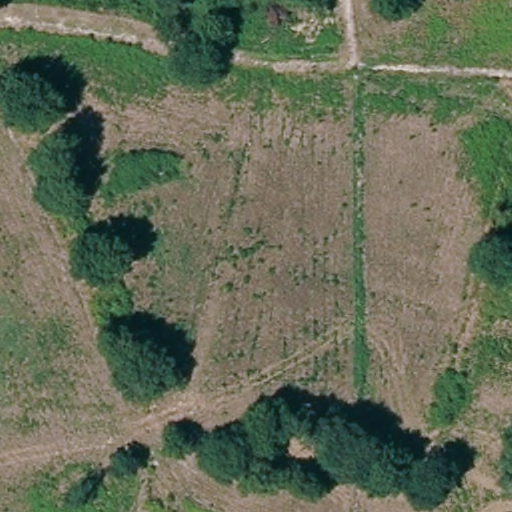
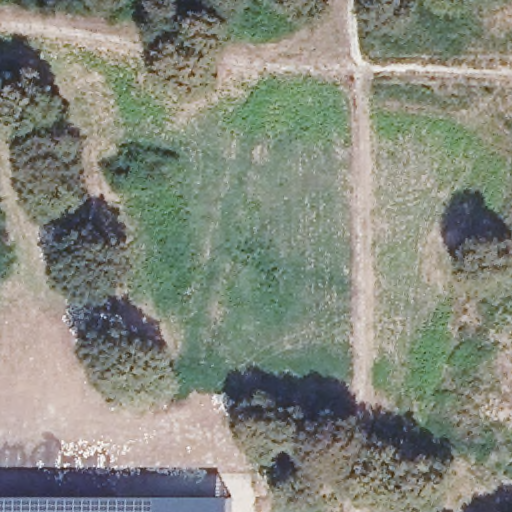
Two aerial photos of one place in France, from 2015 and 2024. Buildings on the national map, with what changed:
new [(232,512),(0,512),(0,496),(232,495),(232,512)]
demolished [(178,511),(181,512),(178,512),(178,511)]

